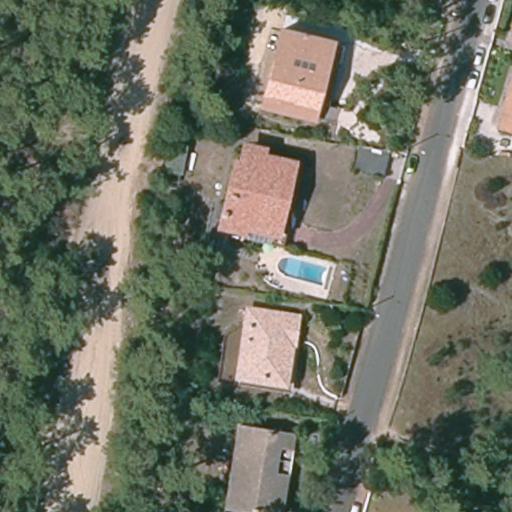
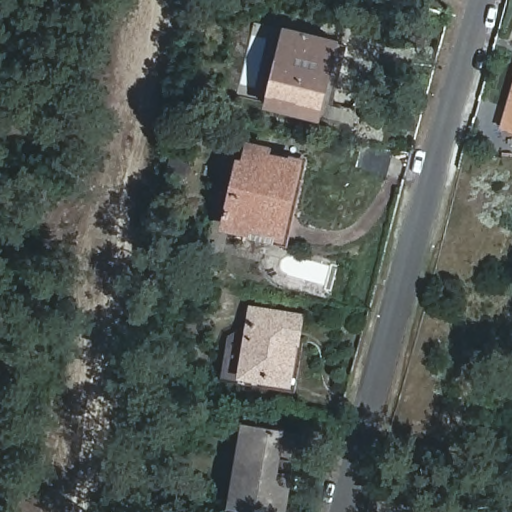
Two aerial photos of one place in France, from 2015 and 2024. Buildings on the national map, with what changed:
unchanged [(437,10),(448,11),(446,20),(435,18),(437,10)]
unchanged [(347,44),(328,118),(258,100),(277,26),(288,29),(272,90),(320,103),(337,42),(347,44)]
unchanged [(320,103),(272,90),(288,29),(337,42),(320,103)]
unchanged [(506,99),(512,80),(512,123),(500,119),(506,99)]
unchanged [(250,226),(227,221),(239,161),(245,163),(249,144),(266,147),(299,154),(297,162),(284,227),(283,233),(250,226)]
unchanged [(396,177),(371,173),(375,148),(400,152),(396,177)]
unchanged [(243,373),(254,309),(300,317),(296,339),(293,338),(286,380),(243,373)]
unchanged [(226,500),(241,416),(257,418),(242,502),(226,500)]
unchanged [(271,507),(242,502),(257,418),(300,425),(297,441),(284,510),(271,507)]

